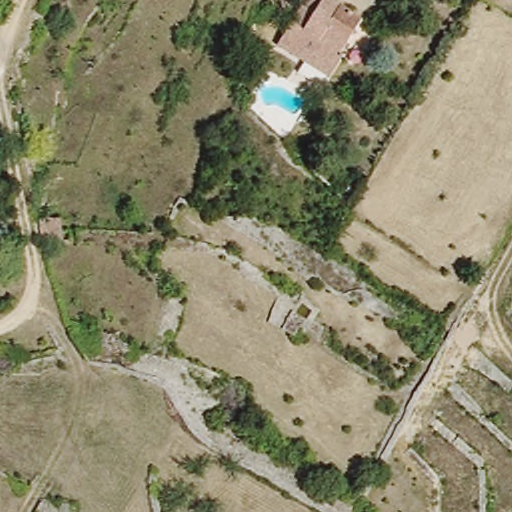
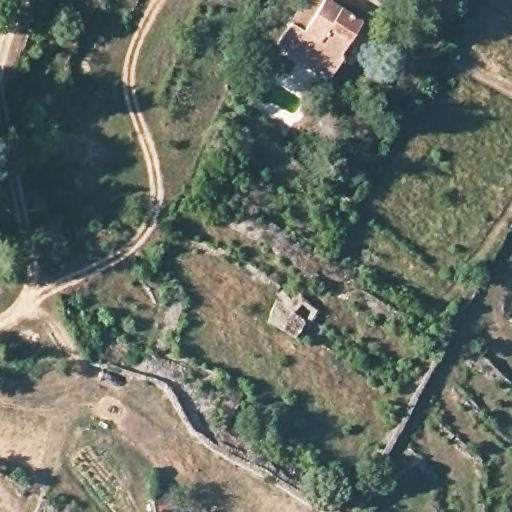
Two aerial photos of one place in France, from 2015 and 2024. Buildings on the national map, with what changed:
unchanged [(330,74),(279,48),(306,0),(324,0),(357,18),(330,74)]
unchanged [(66,241),(38,241),(33,218),(65,216),(66,241)]
unchanged [(267,322),(281,296),(291,302),(299,287),(307,291),(302,299),(320,309),(315,318),(330,325),(320,340),(302,330),(300,338),(267,322)]

